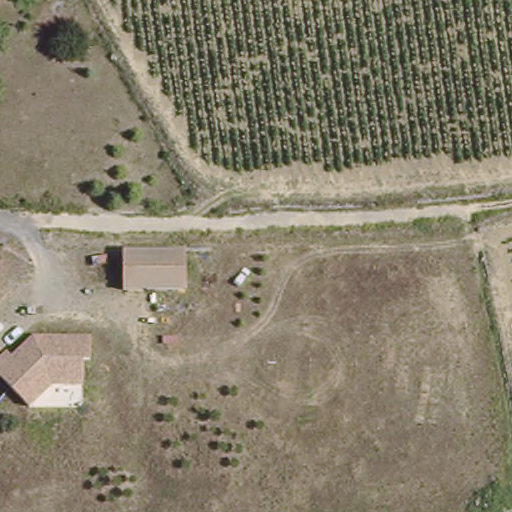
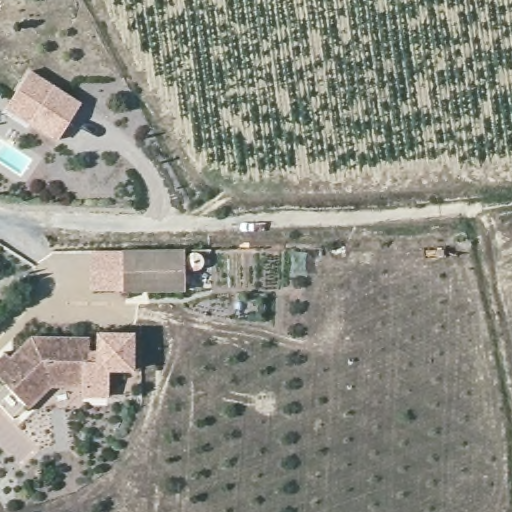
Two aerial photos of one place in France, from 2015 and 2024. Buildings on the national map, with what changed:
new [(81,101),(58,140),(5,107),(30,69),(81,101)]
unchanged [(122,255),(180,255),(179,292),(120,292),(122,255)]
new [(97,350),(97,331),(136,332),(135,370),(108,370),(108,400),(83,398),(83,385),(78,385),(78,360),(86,360),(86,350),(97,350)]
unchanged [(29,333),(87,335),(86,360),(78,360),(78,385),(46,384),(25,404),(0,377),(0,348),(0,347),(5,353),(29,333)]

